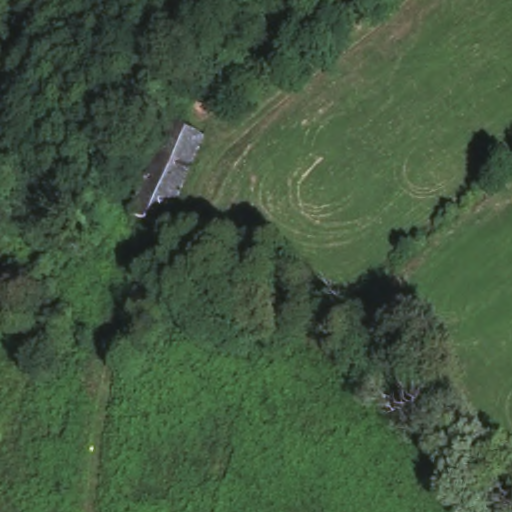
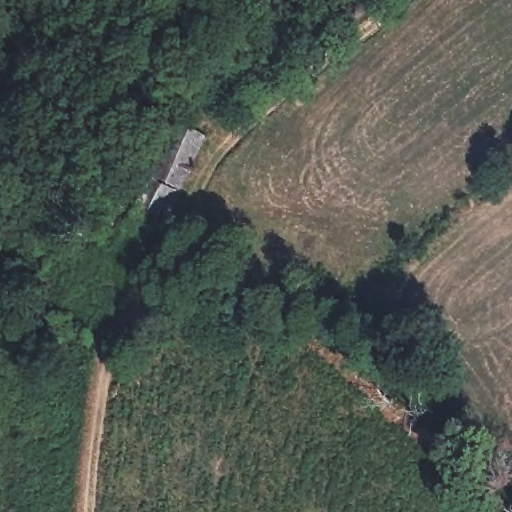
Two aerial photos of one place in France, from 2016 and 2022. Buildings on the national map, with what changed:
unchanged [(166,124),(201,139),(158,235),(122,221),(166,124)]

